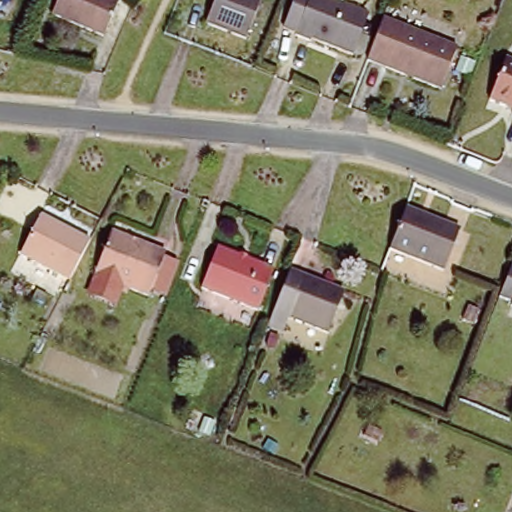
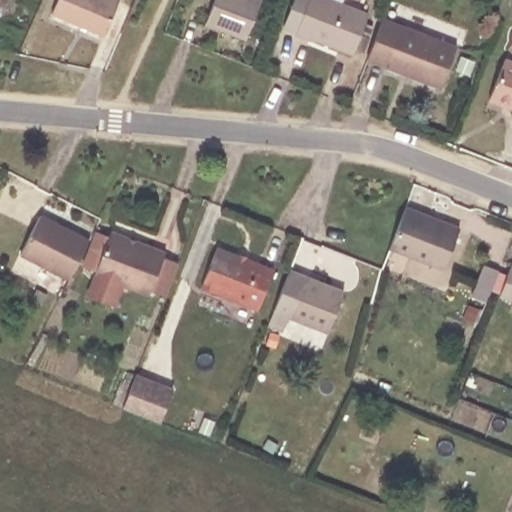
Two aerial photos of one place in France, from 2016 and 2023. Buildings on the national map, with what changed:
unchanged [(115,0),(116,0),(101,32),(53,11),(58,0),(115,0)]
unchanged [(261,0),(240,53),(202,38),(217,0),(261,0)]
unchanged [(320,44),(318,47),(302,41),(304,38),(290,33),(304,0),(320,0),(352,0),(353,0),(349,11),(375,22),(360,60),(320,44)]
unchanged [(385,20),(458,51),(442,90),(368,60),(385,20)]
unchanged [(512,61),(512,113),(509,112),(511,106),(488,98),(503,57),(512,61)]
unchanged [(405,207),(457,229),(441,268),(389,247),(405,207)]
unchanged [(39,218),(88,243),(69,281),(20,254),(39,218)]
unchanged [(114,233),(166,253),(150,295),(98,274),(114,233)]
unchanged [(211,249),(270,271),(253,309),(196,288),(211,249)]
unchanged [(287,271),(340,293),(325,330),(285,315),(277,330),(266,326),(287,271)]
new [(134,375),(171,389),(157,422),(121,408),(134,375)]

